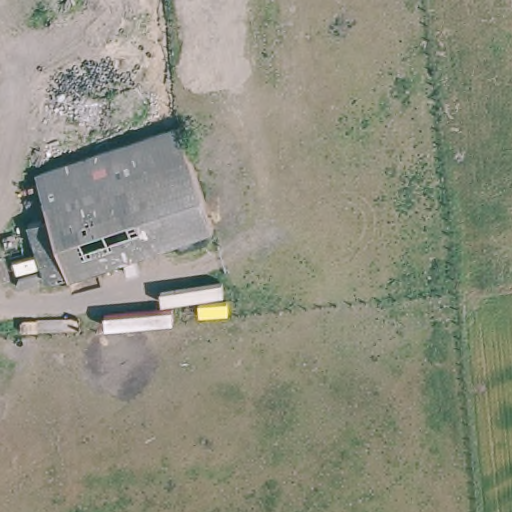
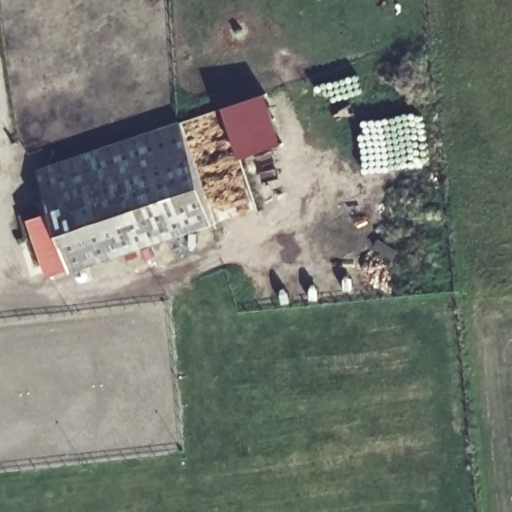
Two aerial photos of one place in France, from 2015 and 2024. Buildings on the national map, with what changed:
new [(282,146),(241,160),(222,109),(265,96),(282,146)]
unchanged [(215,212),(54,280),(30,224),(52,215),(35,172),(175,116),(215,212)]

